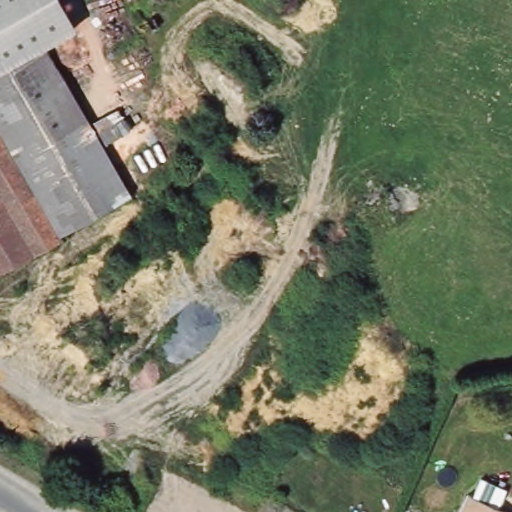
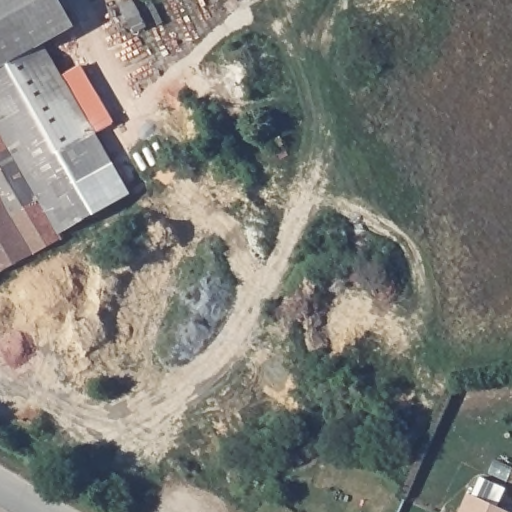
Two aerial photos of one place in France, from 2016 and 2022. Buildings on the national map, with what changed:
unchanged [(0,274),(0,0),(59,0),(74,27),(45,44),(91,123),(117,108),(130,128),(101,145),(131,196),(0,274)]
unchanged [(512,511),(512,512),(464,512),(472,493),(512,511)]

